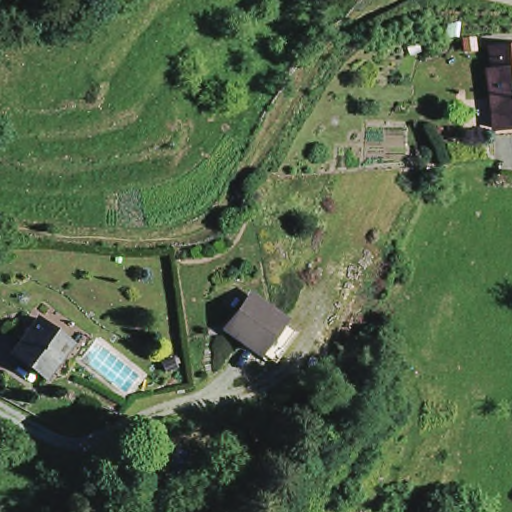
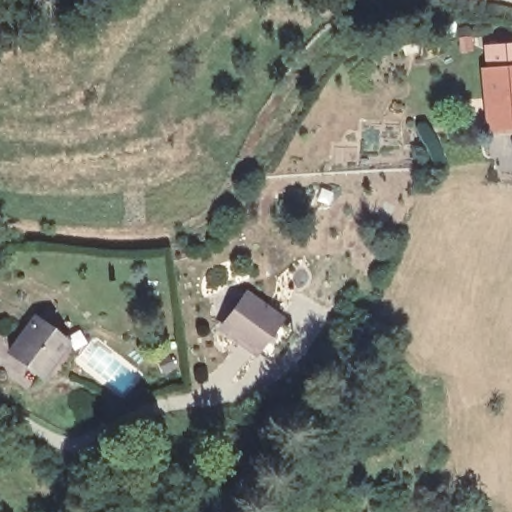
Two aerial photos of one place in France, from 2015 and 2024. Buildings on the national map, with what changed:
unchanged [(482,73),(482,70),(487,69),(485,48),(512,45),(512,127),(488,129),(483,79),(482,73)]
unchanged [(232,310),(267,295),(283,331),(290,349),(254,363),(247,346),(232,310)]
unchanged [(35,378),(3,354),(29,319),(62,343),(35,378)]

